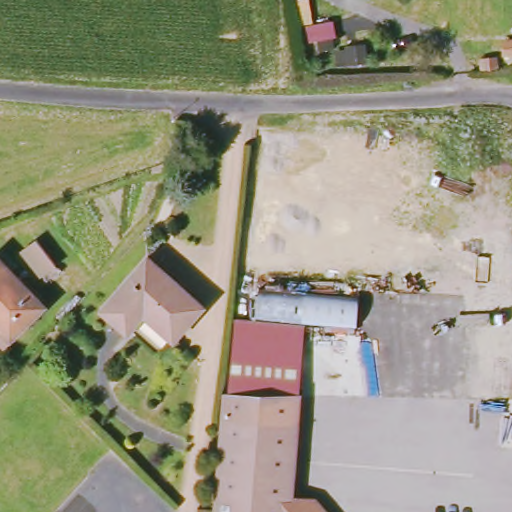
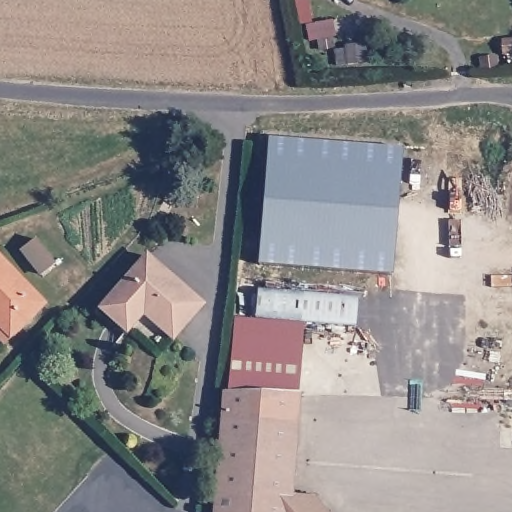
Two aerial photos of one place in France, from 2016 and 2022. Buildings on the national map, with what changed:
unchanged [(511,53),(509,39),(512,39),(512,53),(511,53)]
new [(260,264),(269,139),(403,149),(393,275),(260,264)]
unchanged [(48,272),(35,283),(15,259),(28,247),(48,272)]
unchanged [(204,300),(175,336),(165,329),(154,343),(132,327),(126,332),(101,312),(144,258),(204,300)]
unchanged [(6,339),(0,332),(0,273),(35,309),(6,339)]
new [(355,325),(299,322),(256,318),(259,292),(358,298),(355,325)]
unchanged [(215,446),(229,316),(299,322),(285,502),(305,504),(312,512),(210,512),(215,446)]

